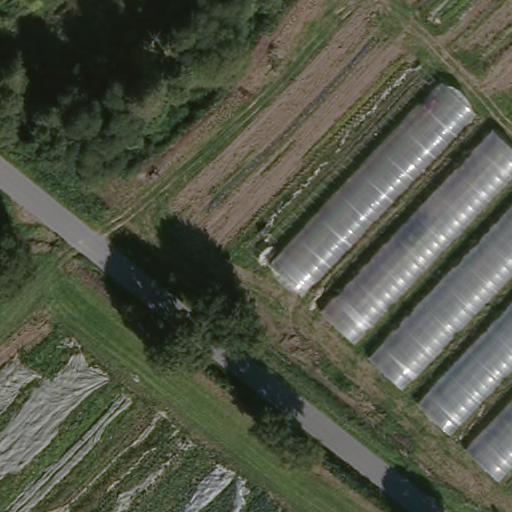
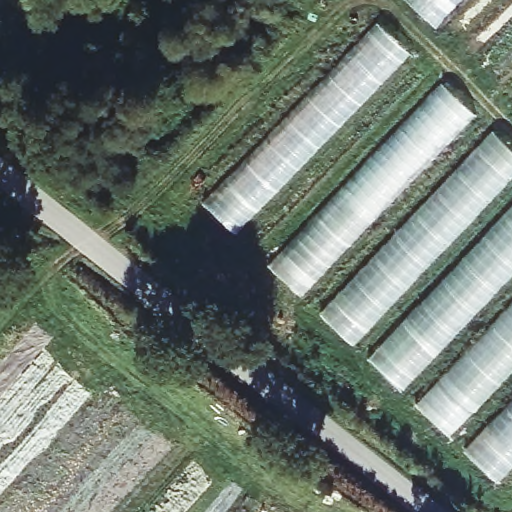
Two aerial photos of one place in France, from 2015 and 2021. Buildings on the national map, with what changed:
new [(408,0),(462,0),(435,29),(408,0)]
new [(412,54),(237,235),(204,202),(378,22),(412,54)]
unchanged [(476,114),(302,296),(269,266),(441,80),(476,114)]
unchanged [(512,145),(512,473),(500,485),(317,311),(496,130),(512,145)]

